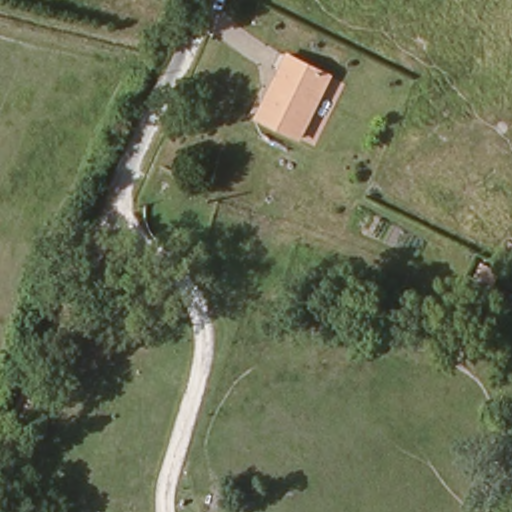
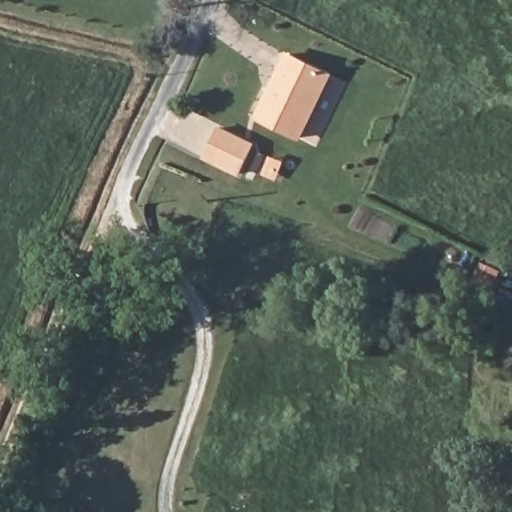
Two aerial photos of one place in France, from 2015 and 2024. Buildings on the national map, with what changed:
unchanged [(300,136),(259,116),(289,55),(332,75),(300,136)]
new [(218,129),(254,146),(239,176),(203,159),(218,129)]

